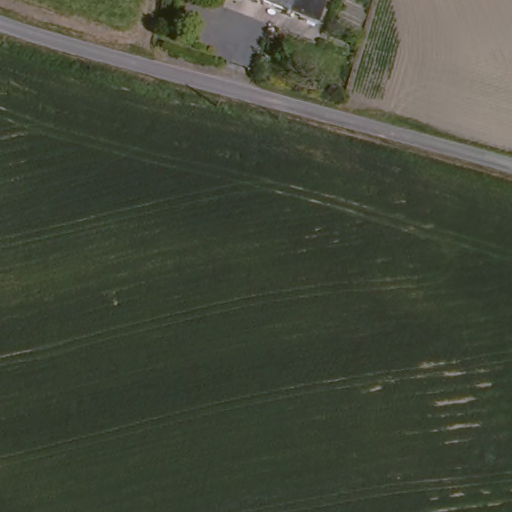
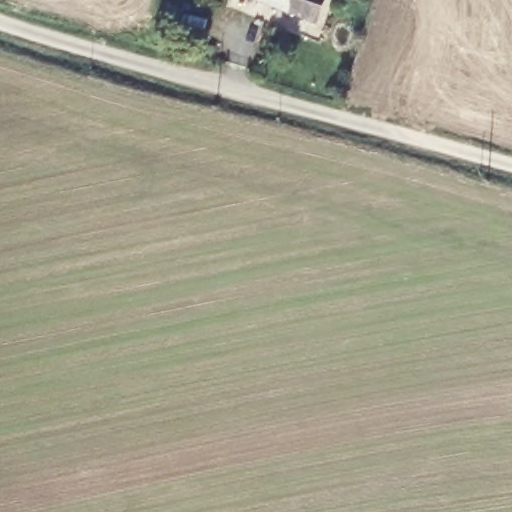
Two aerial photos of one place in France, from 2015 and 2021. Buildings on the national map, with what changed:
unchanged [(281,8),(258,0),(284,0),(281,8)]
unchanged [(313,19),(281,8),(284,0),(320,0),(313,19)]

